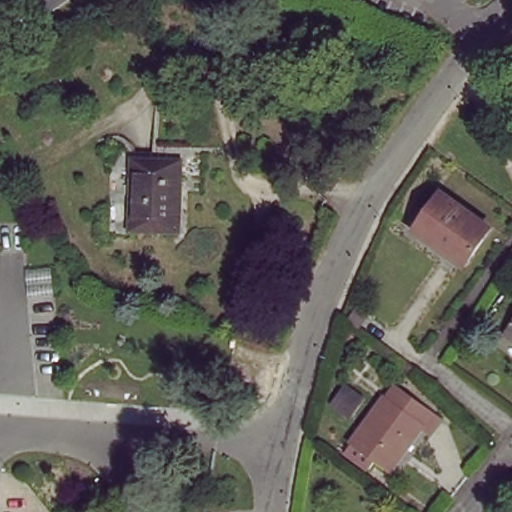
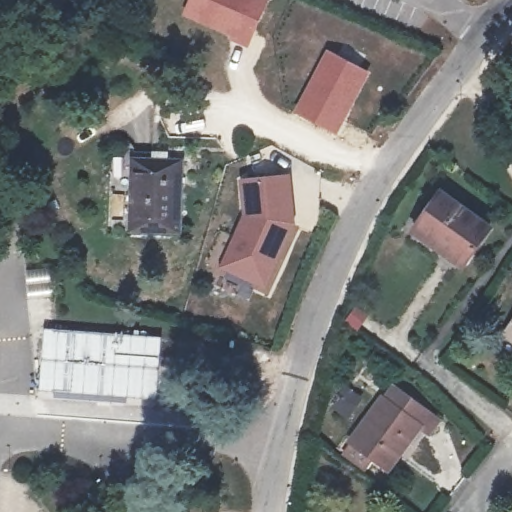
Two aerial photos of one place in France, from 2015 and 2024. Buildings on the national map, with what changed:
unchanged [(34,29),(17,6),(27,0),(74,0),(34,29)]
new [(188,0),(267,0),(247,47),(181,15),(188,0)]
new [(326,49),(370,71),(337,135),(292,111),(326,49)]
unchanged [(181,241),(131,237),(135,164),(184,164),(181,241)]
new [(223,267),(246,214),(242,181),(289,177),(292,223),(263,285),(223,267)]
unchanged [(485,233),(461,267),(413,230),(437,197),(485,233)]
unchanged [(359,306),(368,314),(360,327),(350,319),(359,306)]
unchanged [(512,318),(512,342),(501,333),(512,318)]
new [(43,329),(161,337),(157,399),(127,396),(126,403),(53,399),(54,391),(40,391),(43,329)]
unchanged [(425,439),(415,432),(386,475),(347,448),(380,403),(382,404),(391,392),(435,424),(425,439)]

